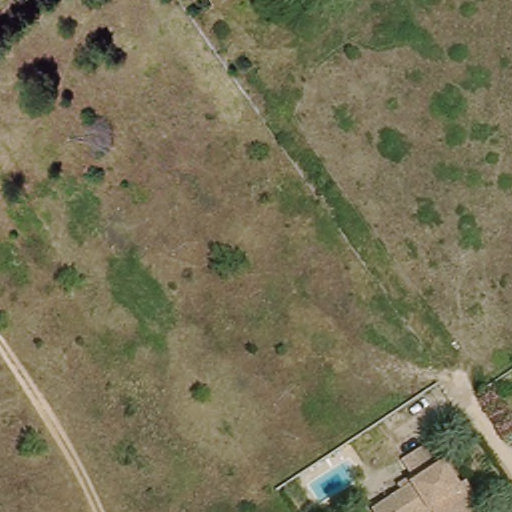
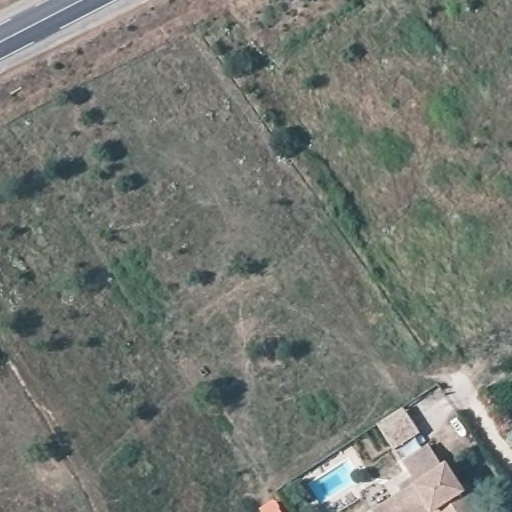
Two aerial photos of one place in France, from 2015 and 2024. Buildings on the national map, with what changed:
unchanged [(410,469),(437,450),(451,470),(465,491),(471,488),(487,512),(388,512),(423,489),(410,469)]

